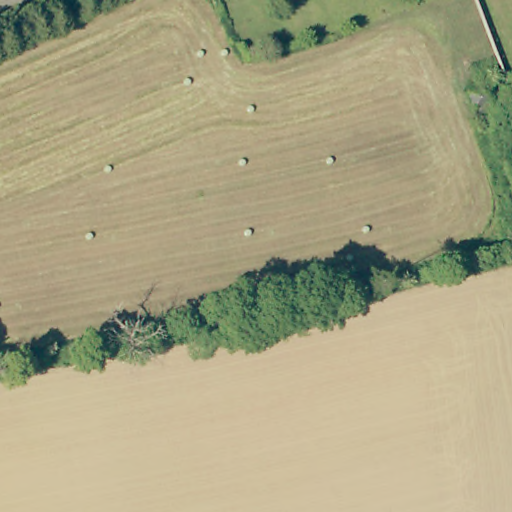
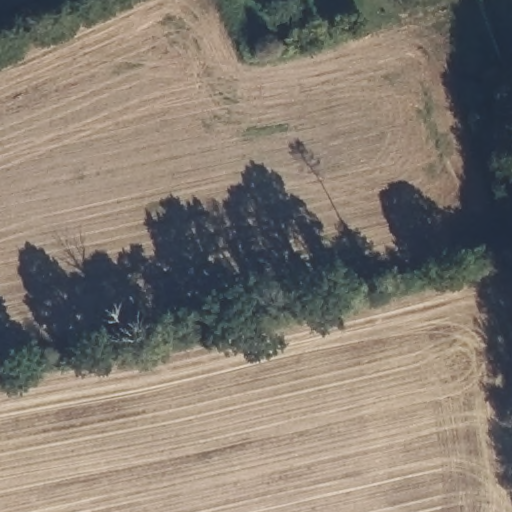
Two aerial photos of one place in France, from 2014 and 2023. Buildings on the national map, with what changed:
unchanged [(497,99),(498,101),(475,110),(470,94),(492,85),(497,99)]
unchanged [(505,120),(482,128),(476,112),(500,103),(505,120)]

